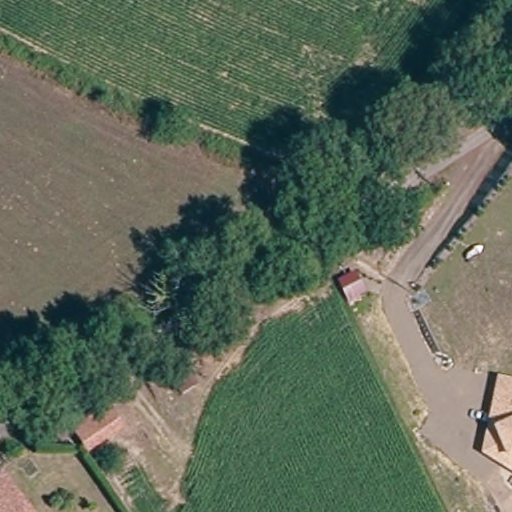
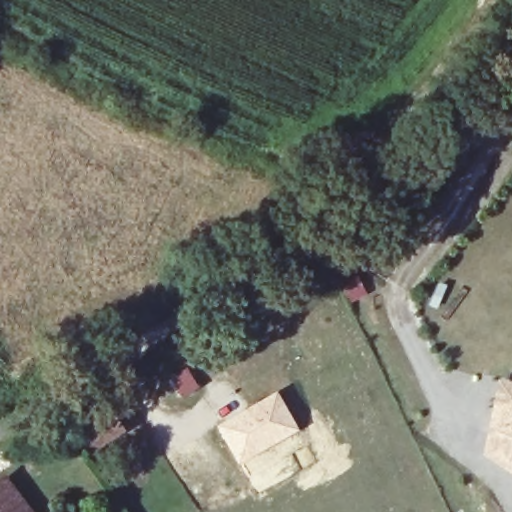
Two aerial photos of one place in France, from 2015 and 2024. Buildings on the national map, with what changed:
new [(186,366),(200,387),(181,399),(167,377),(186,366)]
unchanged [(512,475),(481,456),(498,378),(512,381),(512,475)]
new [(277,390),(300,429),(239,464),(216,425),(277,390)]
unchanged [(121,427),(87,449),(76,432),(110,410),(121,427)]
unchanged [(0,473),(30,512),(0,512),(0,474),(0,473)]

